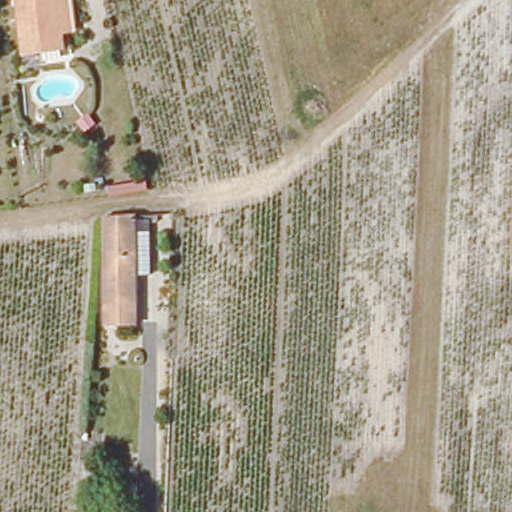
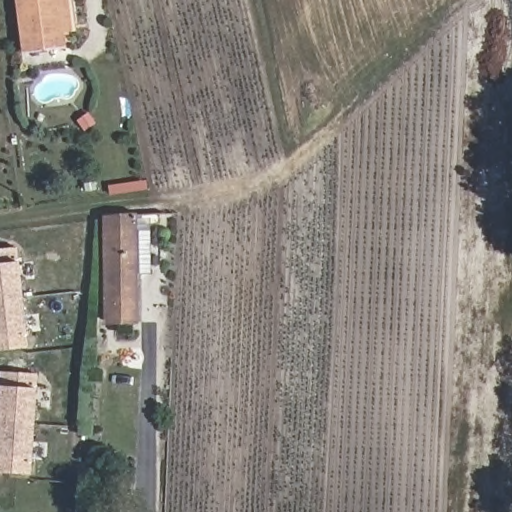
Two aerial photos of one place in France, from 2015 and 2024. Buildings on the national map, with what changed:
unchanged [(59,32),(60,49),(20,51),(14,0),(70,0),(71,24),(72,32),(65,32),(59,32)]
unchanged [(105,322),(106,300),(106,216),(135,215),(135,236),(150,236),(148,278),(136,278),(136,299),(136,323),(105,322)]
new [(28,346),(0,349),(0,250),(17,248),(28,346)]
new [(36,375),(30,474),(0,472),(0,373),(36,375)]

